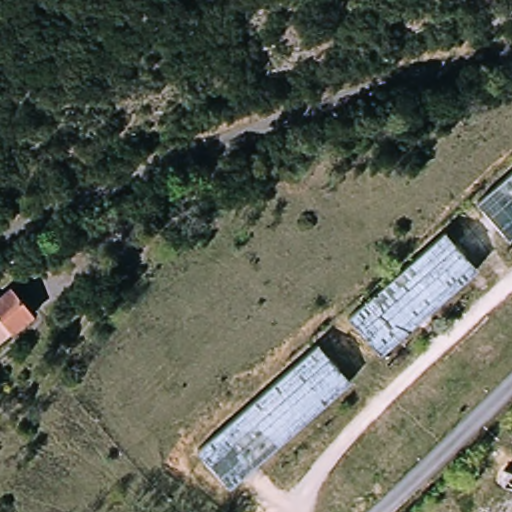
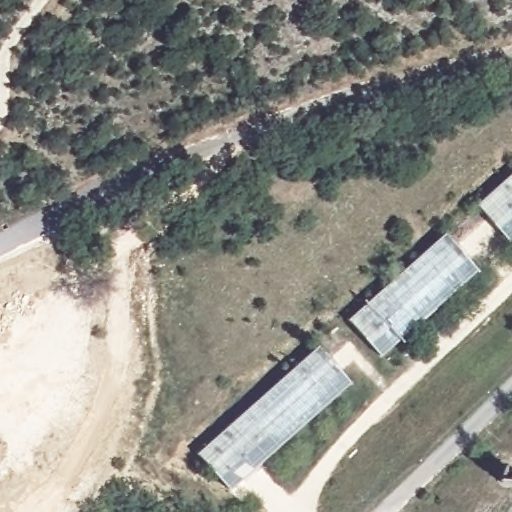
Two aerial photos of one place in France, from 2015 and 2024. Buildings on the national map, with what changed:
unchanged [(479,206),(512,176),(512,240),(511,241),(479,206)]
unchanged [(351,321),(448,234),(480,270),(382,357),(351,321)]
demolished [(13,332),(2,318),(0,319),(0,300),(13,290),(35,319),(15,336),(13,332)]
unchanged [(348,382),(230,491),(197,455),(315,346),(348,382)]

